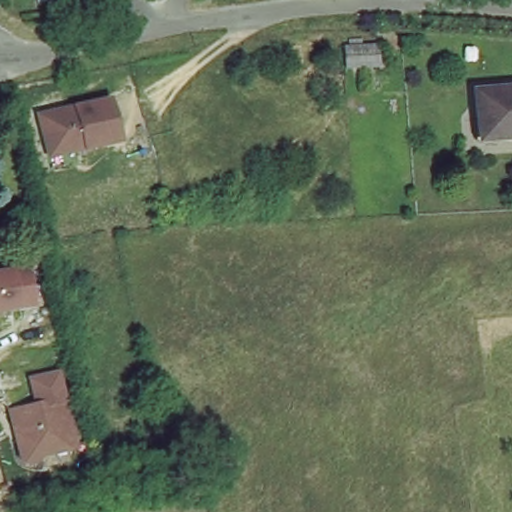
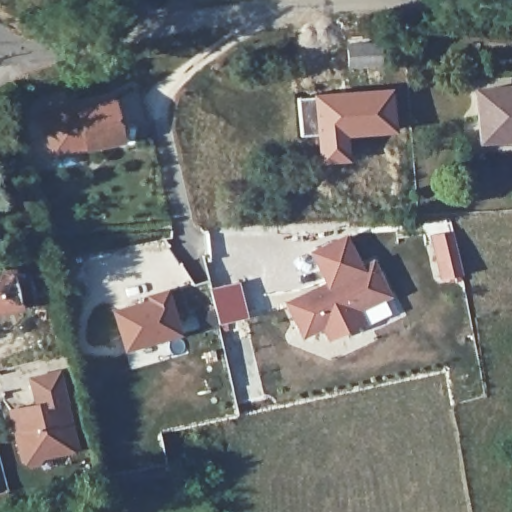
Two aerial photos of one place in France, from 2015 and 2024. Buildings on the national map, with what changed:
unchanged [(367,74),(335,72),(336,47),(368,48),(367,74)]
new [(397,133),(349,136),(350,162),(318,163),(315,136),(298,137),(295,96),(312,94),(312,92),(394,86),(397,133)]
unchanged [(481,91),(512,89),(512,140),(482,140),(481,91)]
unchanged [(74,107),(108,99),(118,141),(85,149),(84,149),(83,144),(47,153),(39,116),(74,107)]
new [(328,338),(321,326),(301,336),(285,301),(324,280),(309,252),(346,235),(360,263),(372,259),(389,294),(358,310),(363,321),(328,338)]
unchanged [(0,314),(0,268),(28,262),(37,306),(0,314)]
new [(123,349),(112,309),(147,298),(146,294),(166,288),(180,334),(123,349)]
unchanged [(39,464),(25,467),(18,461),(8,410),(34,402),(28,375),(61,369),(77,449),(41,458),(39,464)]

